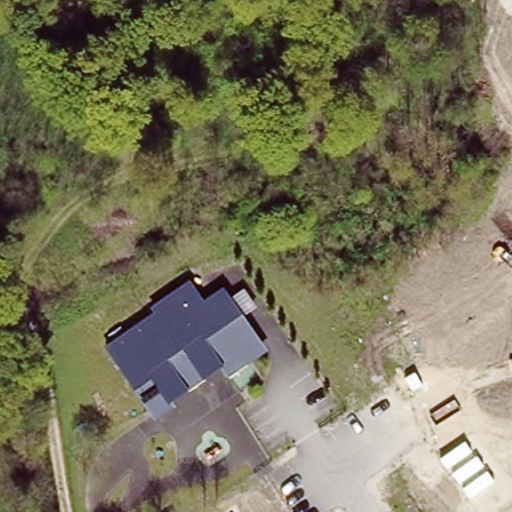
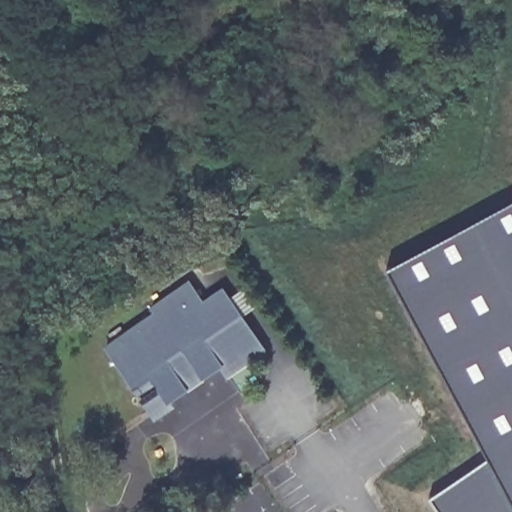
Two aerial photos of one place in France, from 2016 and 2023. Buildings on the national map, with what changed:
new [(430,490),(489,451),(388,264),(512,199),(512,512),(443,512),(430,490)]
unchanged [(218,366),(167,401),(171,406),(153,419),(107,352),(157,318),(153,313),(191,287),(205,307),(224,293),(230,302),(243,293),(254,309),(242,318),(263,350),(225,376),(218,366)]

